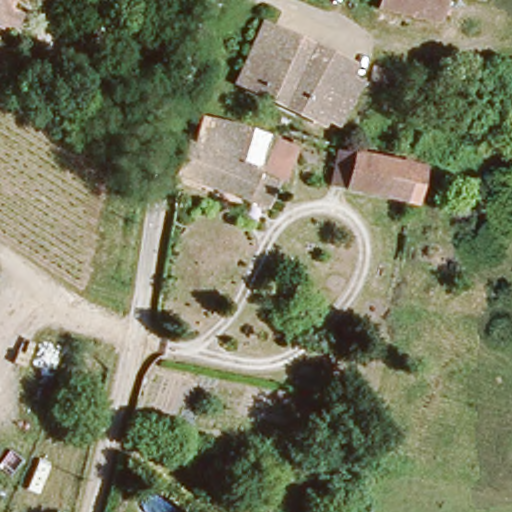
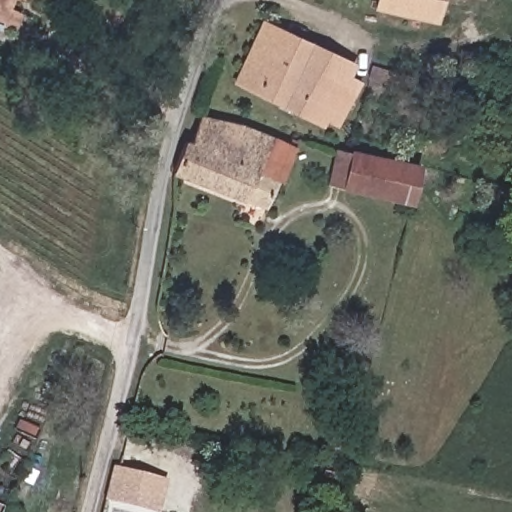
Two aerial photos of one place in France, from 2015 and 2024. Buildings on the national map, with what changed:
unchanged [(26,3),(13,34),(0,29),(0,0),(43,0),(40,7),(26,3)]
unchanged [(373,9),(375,0),(434,0),(436,0),(432,21),(373,9)]
unchanged [(306,83),(331,95),(320,118),(317,123),(230,82),(257,26),(318,56),(306,83)]
unchanged [(331,95),(306,83),(318,56),(346,69),(340,80),(350,84),(331,123),(320,118),(331,95)]
unchanged [(375,65),(416,75),(413,86),(372,76),(375,65)]
unchanged [(187,170),(197,138),(202,141),(215,115),(253,125),(229,187),(187,170)]
unchanged [(229,187),(253,125),(280,141),(302,150),(291,180),(275,208),(229,187)]
unchanged [(337,147),(421,166),(412,202),(329,183),(337,147)]
unchanged [(512,187),(512,196),(493,191),(495,182),(512,187)]
new [(114,465),(168,479),(160,512),(151,512),(105,500),(114,465)]

